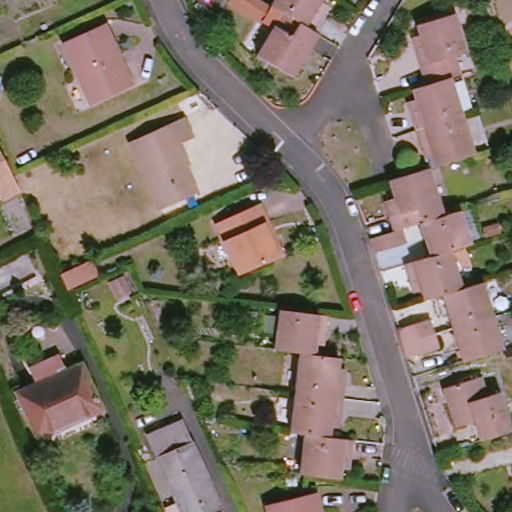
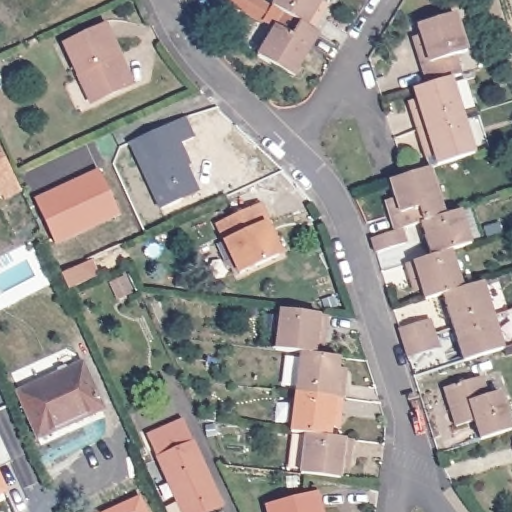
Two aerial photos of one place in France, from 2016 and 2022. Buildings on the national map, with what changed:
unchanged [(262,57),(279,29),(234,2),(235,0),(265,0),(277,7),(288,13),(317,31),(324,34),(299,78),(262,57)]
unchanged [(317,31),(288,13),(277,7),(281,0),(327,0),(325,2),(332,6),(328,13),(317,31)]
unchanged [(417,39),(426,37),(422,26),(460,14),(471,53),(460,56),(466,75),(456,78),(432,86),(420,46),(417,39)]
unchanged [(64,45),(106,26),(132,85),(91,103),(64,45)]
unchanged [(421,101),(417,90),(432,86),(456,78),(467,117),(422,131),(416,111),(414,104),(421,101)]
unchanged [(467,117),(479,155),(437,168),(434,169),(422,131),(467,117)]
unchanged [(186,205),(165,215),(135,148),(189,123),(199,144),(185,150),(191,164),(188,166),(199,190),(202,198),(186,205)]
unchanged [(25,192),(9,200),(6,195),(0,198),(0,143),(22,187),(25,192)]
unchanged [(381,253),(376,239),(402,231),(397,215),(393,202),(401,200),(395,181),(410,176),(434,169),(449,216),(426,223),(407,229),(411,244),(381,253)]
new [(57,245),(35,199),(99,170),(120,215),(57,245)]
unchanged [(283,262),(244,279),(221,229),(265,209),(272,227),(287,259),(283,262)]
unchanged [(426,223),(449,216),(465,211),(475,244),(456,251),(436,257),(426,223)]
unchanged [(416,285),(410,265),(436,257),(456,251),(467,289),(447,295),(429,301),(426,289),(418,292),(416,285)]
unchanged [(68,290),(61,275),(91,261),(97,277),(68,290)]
unchanged [(117,298),(111,283),(122,278),(129,294),(117,298)]
unchanged [(486,283),(497,316),(458,328),(447,295),(467,289),(486,283)]
unchanged [(321,343),(319,355),(306,354),(280,351),(285,311),(332,316),(330,337),(329,344),(321,343)]
unchanged [(507,349),(467,362),(458,328),(497,316),(507,349)]
unchanged [(408,358),(403,344),(399,329),(430,320),(434,334),(439,349),(408,358)]
unchanged [(319,355),(345,358),(343,370),(351,371),(350,378),(347,399),(301,393),(306,354),(319,355)]
unchanged [(22,393),(40,385),(33,370),(64,356),(71,371),(87,364),(107,409),(42,439),(22,393)]
unchanged [(485,441),(479,422),(461,427),(449,389),(486,378),(492,397),(503,393),(512,422),(512,432),(485,441)]
unchanged [(336,426),(335,438),(311,435),(296,433),(301,393),(347,399),(345,420),(344,427),(336,426)]
unchanged [(206,512),(181,512),(147,435),(182,419),(221,505),(206,512)]
unchanged [(346,468),(345,480),(306,475),(311,435),(335,438),(357,440),(355,462),(354,469),(346,468)]
new [(0,468),(0,439),(11,463),(0,468)]
new [(0,495),(0,481),(5,492),(0,495)]
new [(150,512),(95,512),(140,492),(150,512)]
unchanged [(271,511),(321,497),(325,512),(271,512),(271,511)]

